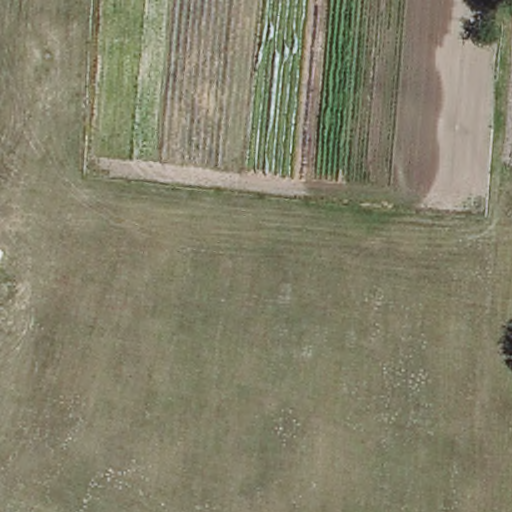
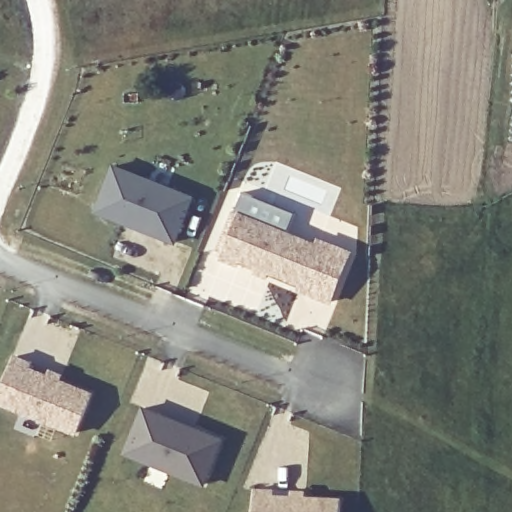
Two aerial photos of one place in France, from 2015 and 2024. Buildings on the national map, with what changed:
new [(197,194),(177,246),(94,214),(114,163),(197,194)]
new [(322,243),(305,287),(274,274),(272,279),(258,274),(259,268),(244,262),(242,267),(220,259),(239,211),(322,243)]
new [(0,394),(16,354),(39,362),(36,368),(50,373),(51,368),(67,375),(66,380),(95,391),(76,436),(0,403),(0,394)]
new [(228,438),(206,489),(124,454),(146,403),(228,438)]
new [(257,488),(279,489),(279,494),(294,494),(294,491),(308,491),(308,495),(343,497),(342,512),(255,512),(257,488)]

